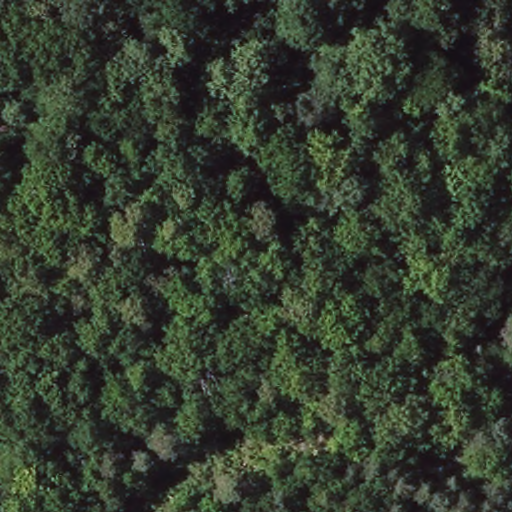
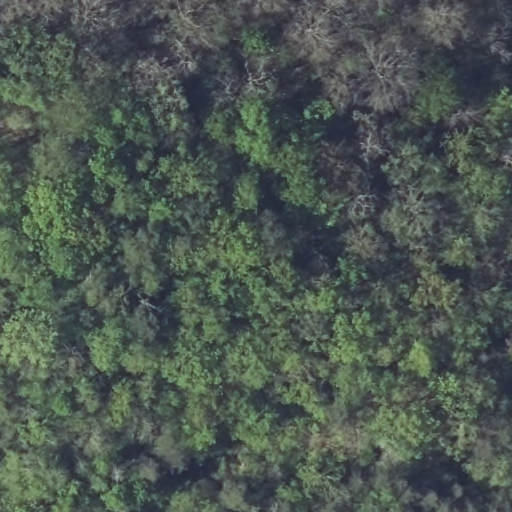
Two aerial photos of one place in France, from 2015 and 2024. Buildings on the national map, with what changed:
[]

